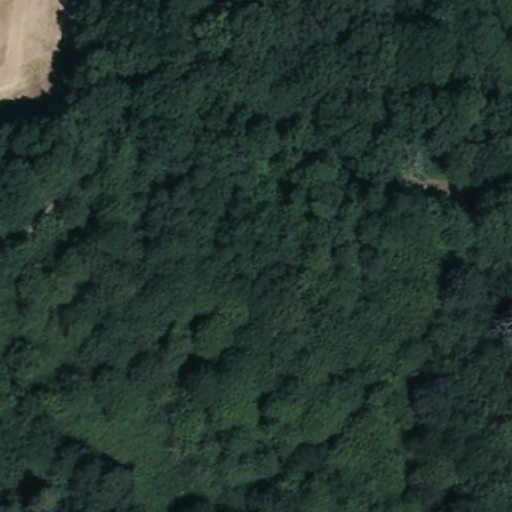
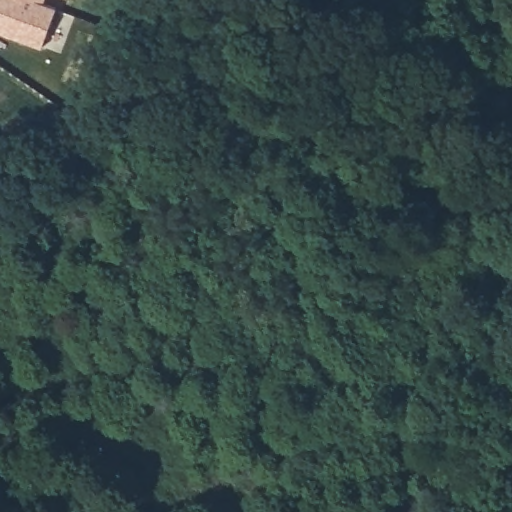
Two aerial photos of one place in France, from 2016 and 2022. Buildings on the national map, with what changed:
new [(38,0),(42,1),(56,7),(41,47),(0,32),(0,0),(38,0)]
new [(38,0),(43,0),(42,1),(38,0)]

